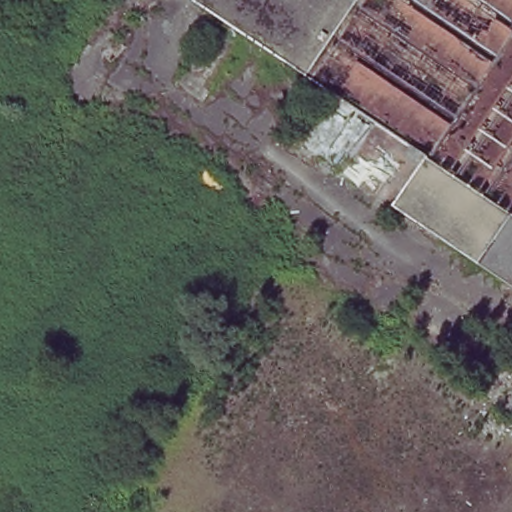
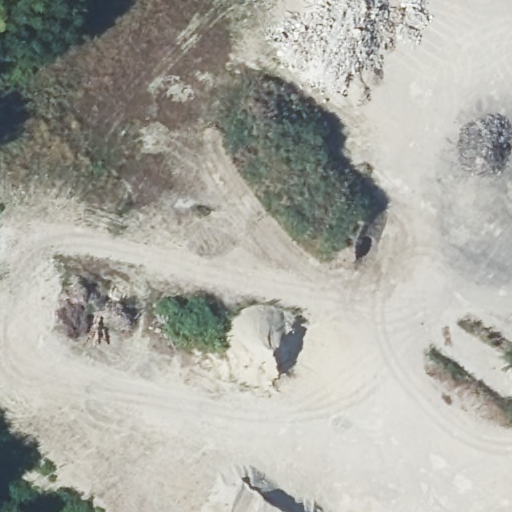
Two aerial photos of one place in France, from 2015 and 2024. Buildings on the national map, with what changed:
demolished [(322,85),(197,0),(512,0),(512,287),(288,135),(322,85)]

